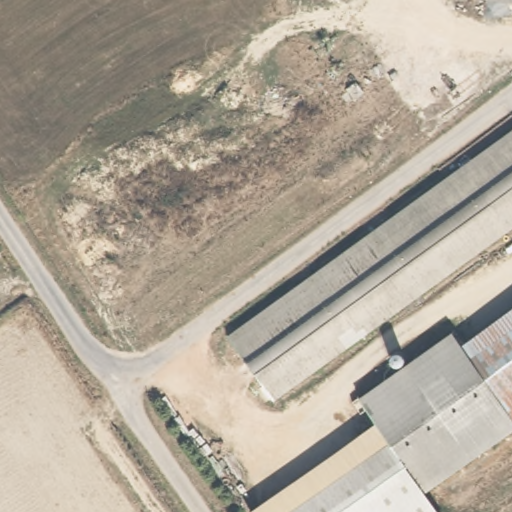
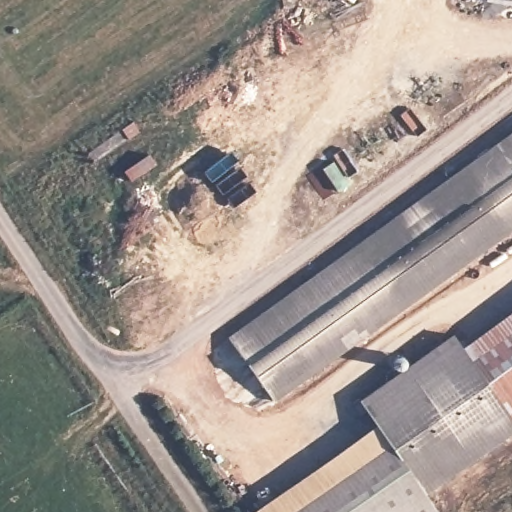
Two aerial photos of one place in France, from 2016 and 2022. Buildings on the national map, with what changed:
unchanged [(229,332),(512,132),(512,229),(275,398),(229,332)]
unchanged [(461,349),(512,312),(512,347),(476,371),(461,349)]
unchanged [(376,426),(357,400),(451,333),(461,349),(476,371),(512,423),(512,430),(424,493),(376,426)]
unchanged [(512,347),(512,423),(476,371),(512,347)]
unchanged [(424,493),(438,512),(250,512),(376,426),(424,493)]

